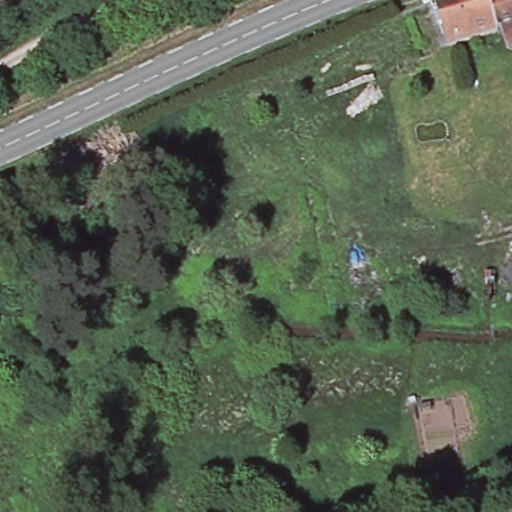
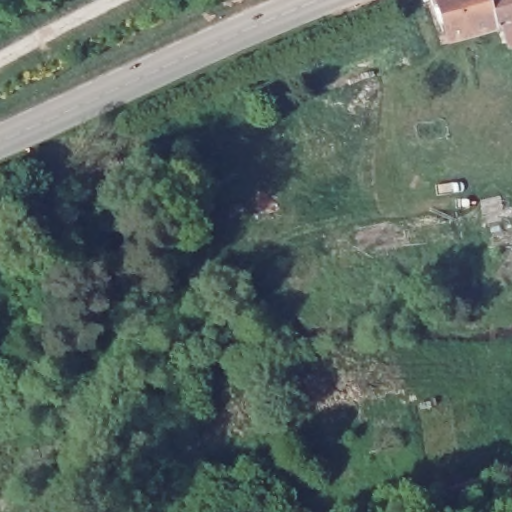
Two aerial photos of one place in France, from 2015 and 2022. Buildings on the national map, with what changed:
unchanged [(497,30),(447,46),(432,0),(512,0),(512,47),(503,50),(501,43),(498,33),(497,30)]

